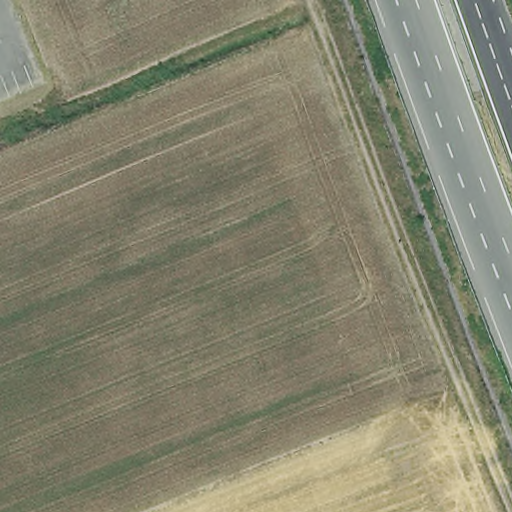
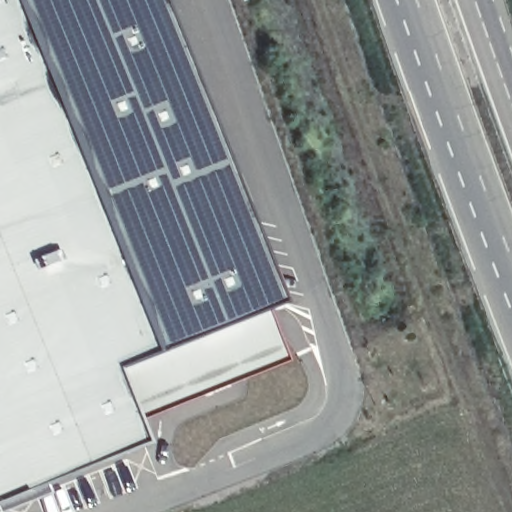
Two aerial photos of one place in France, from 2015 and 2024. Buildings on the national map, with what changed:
new [(287,302),(265,313),(287,364),(142,421),(150,445),(0,504),(0,0),(166,0),(287,302)]

